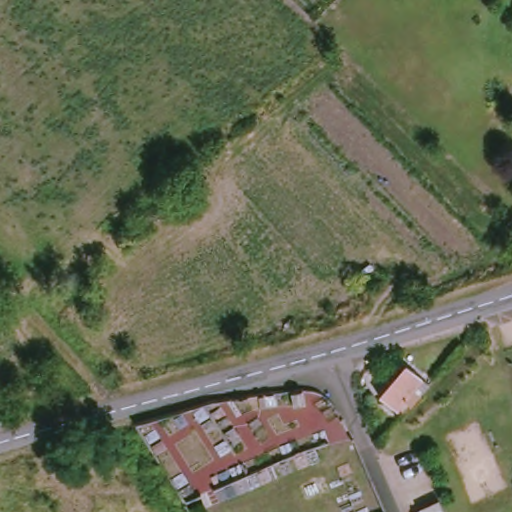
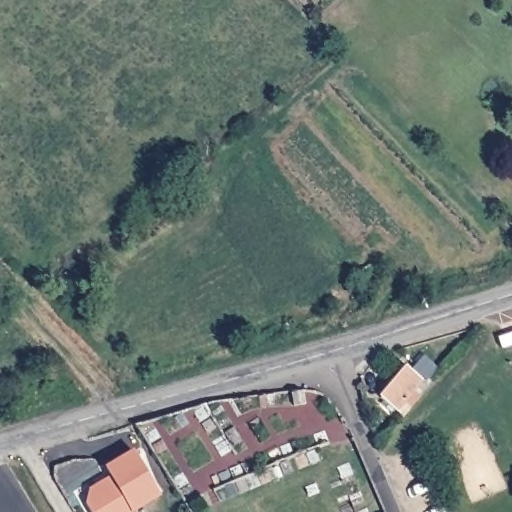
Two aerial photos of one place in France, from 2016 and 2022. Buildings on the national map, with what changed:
unchanged [(397,411),(382,398),(408,368),(424,382),(397,411)]
new [(162,497),(134,512),(91,512),(86,504),(90,489),(109,476),(105,469),(134,451),(162,497)]

